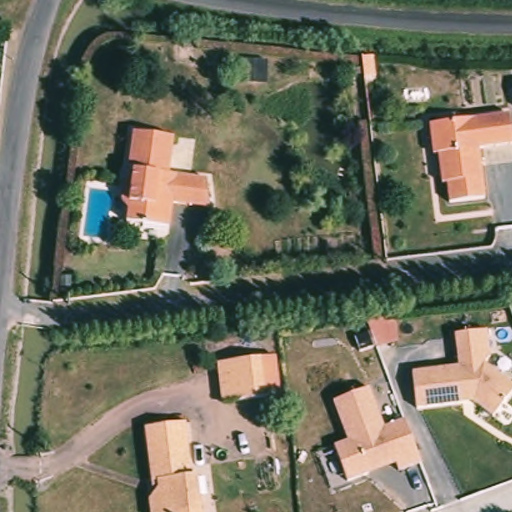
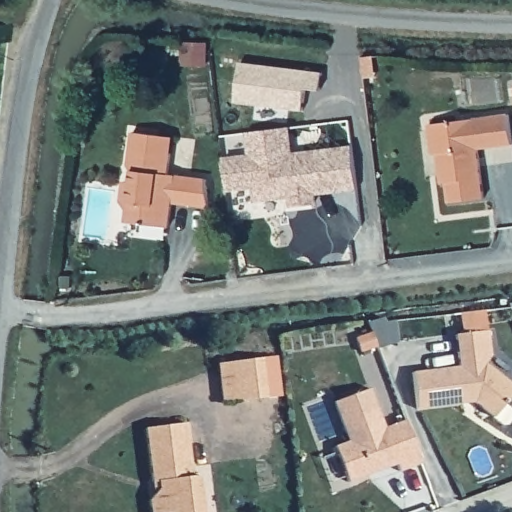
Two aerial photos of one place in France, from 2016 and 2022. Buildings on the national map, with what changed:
unchanged [(195,41),(201,41),(201,53),(196,53),(185,52),(185,41),(195,41)]
unchanged [(512,137),(512,150),(479,154),(485,204),(450,207),(448,188),(443,189),(440,159),(435,160),(431,130),(510,120),(512,137)]
new [(222,157),(249,153),(246,132),(291,126),(295,152),(352,145),(357,191),(316,196),(317,204),(290,207),(288,199),(255,202),(252,189),(227,192),(222,157)]
unchanged [(171,231),(130,225),(132,212),(125,204),(129,184),(135,185),(137,174),(134,167),(139,135),(165,139),(177,141),(175,157),(172,178),(209,184),(211,200),(212,212),(175,206),(171,231)]
unchanged [(64,286),(65,273),(76,274),(75,287),(64,286)]
new [(385,315),(387,320),(391,318),(400,340),(380,348),(369,321),(385,315)]
unchanged [(457,366),(454,335),(488,331),(488,367),(512,386),(512,393),(492,421),(472,403),(413,412),(413,373),(457,366)]
unchanged [(217,368),(260,362),(276,361),(281,400),(265,402),(223,407),(217,368)]
unchanged [(405,418),(421,462),(398,472),(395,462),(346,481),(332,446),(346,440),(332,402),(370,387),(384,426),(405,418)]
unchanged [(196,481),(201,481),(205,512),(154,512),(154,505),(158,499),(151,432),(190,427),(196,481)]

